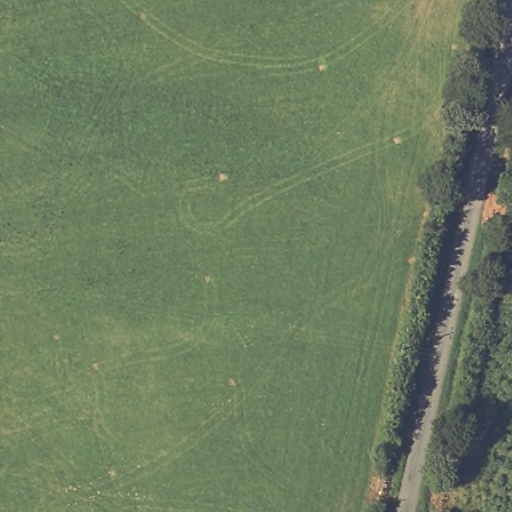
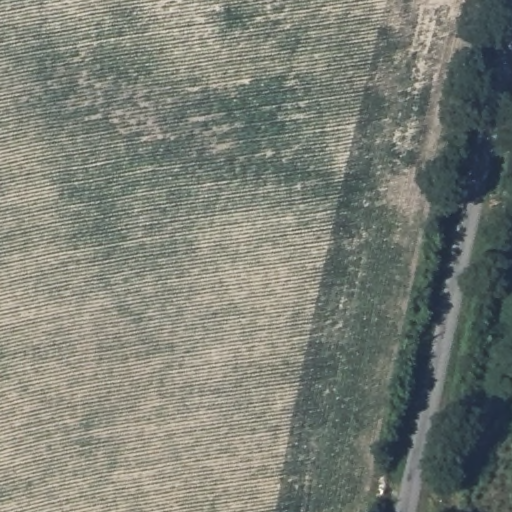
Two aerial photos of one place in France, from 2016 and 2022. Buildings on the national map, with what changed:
[]

